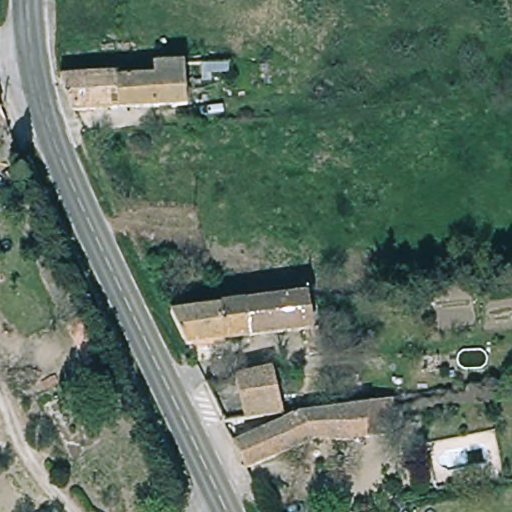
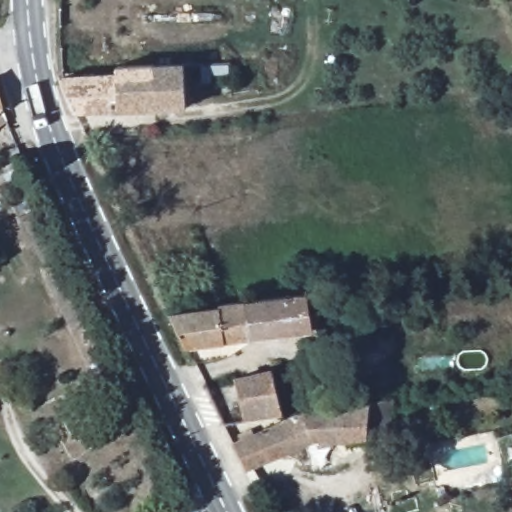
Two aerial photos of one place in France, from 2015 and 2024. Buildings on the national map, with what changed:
unchanged [(74,107),(61,73),(153,69),(155,59),(219,60),(219,74),(186,82),(188,101),(74,107)]
unchanged [(11,174),(0,180),(0,164),(4,162),(11,174)]
unchanged [(60,262),(93,334),(81,342),(65,310),(58,312),(40,271),(60,262)]
unchanged [(219,307),(218,305),(306,294),(315,332),(186,345),(172,314),(219,307)]
unchanged [(230,376),(268,367),(279,415),(240,421),(230,376)]
unchanged [(291,412),(388,399),(389,436),(308,441),(295,447),(279,417),(291,412)]
unchanged [(279,417),(295,447),(243,470),(230,443),(279,417)]

